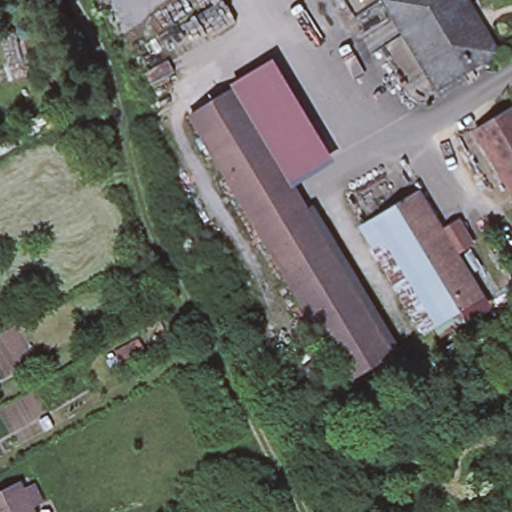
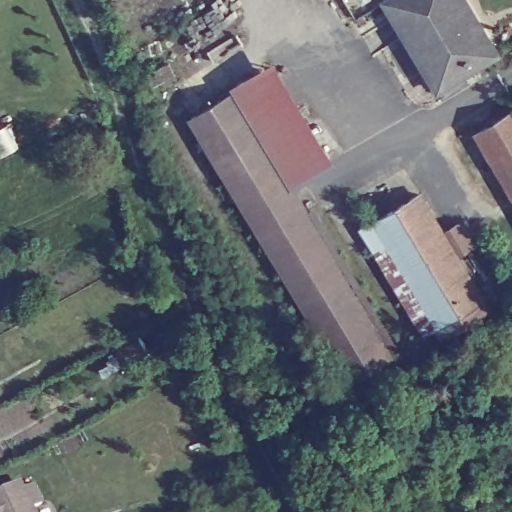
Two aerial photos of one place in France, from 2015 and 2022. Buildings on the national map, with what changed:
unchanged [(497,52),(438,87),(386,0),(467,0),(497,52)]
unchanged [(235,86),(279,59),(336,155),(293,184),(235,86)]
unchanged [(343,382),(187,117),(230,91),(388,356),(343,382)]
unchanged [(512,194),(474,129),(512,106),(512,194)]
unchanged [(473,306),(430,333),(367,227),(410,200),(473,306)]
unchanged [(17,487),(20,493),(32,488),(40,508),(33,512),(0,512),(0,494),(17,487)]

